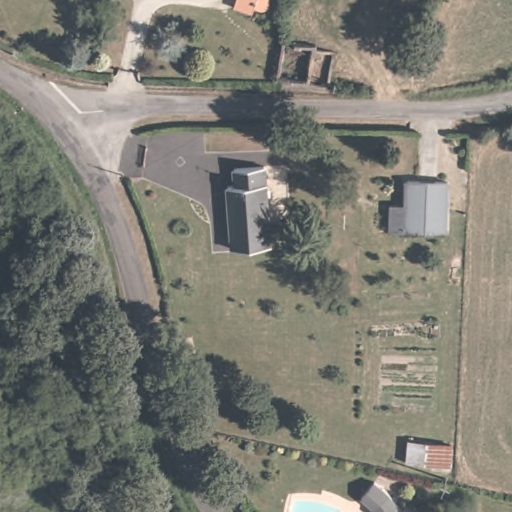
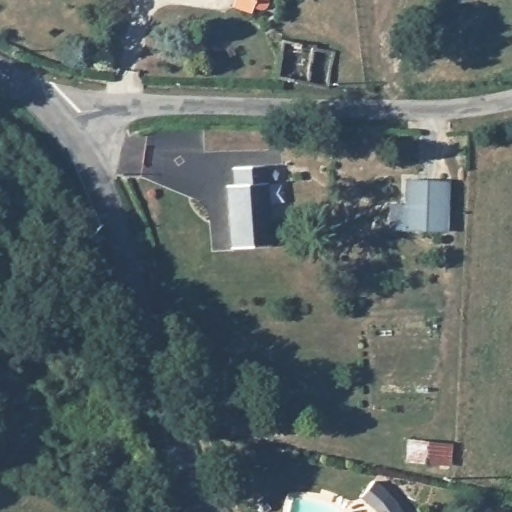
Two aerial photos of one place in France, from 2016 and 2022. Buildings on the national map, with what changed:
unchanged [(234,13),(239,0),(264,0),(256,20),(234,13)]
unchanged [(221,186),(227,185),(227,168),(257,166),(263,246),(227,247),(221,186)]
unchanged [(391,185),(407,185),(406,177),(446,177),(445,229),(406,227),(392,227),(391,185)]
unchanged [(406,437),(458,444),(454,471),(403,464),(406,437)]
unchanged [(403,508),(405,512),(375,512),(361,497),(376,480),(403,508)]

